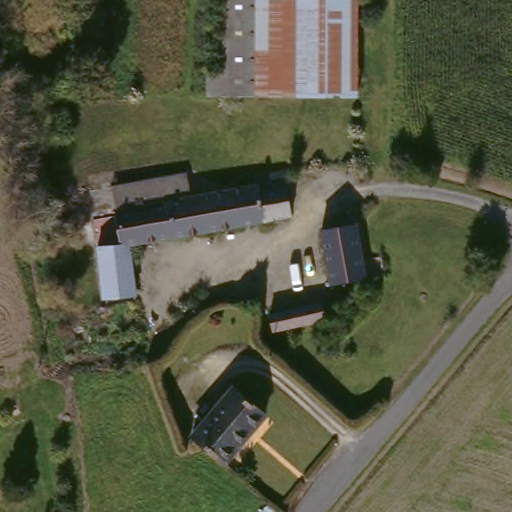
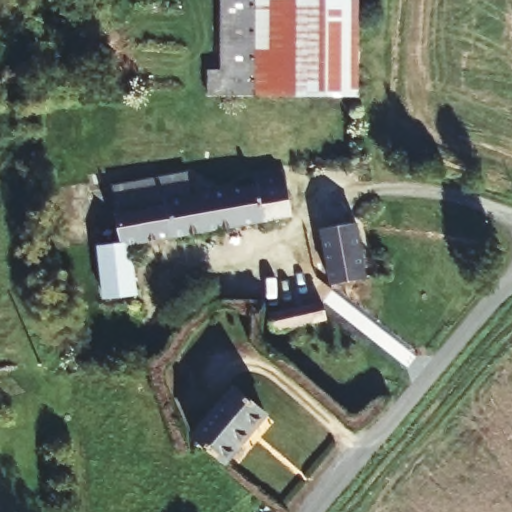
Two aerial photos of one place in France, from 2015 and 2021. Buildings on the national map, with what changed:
unchanged [(221,71),(222,0),(260,0),(259,97),(208,98),(209,71),(221,71)]
unchanged [(358,97),(259,97),(260,0),(358,0),(358,97)]
unchanged [(117,246),(106,189),(184,174),(189,198),(252,186),(252,178),(280,172),(287,216),(126,249),(130,310),(101,315),(92,250),(117,246)]
unchanged [(354,223),(364,286),(324,293),(313,230),(354,223)]
unchanged [(231,388),(263,416),(219,465),(187,437),(231,388)]

